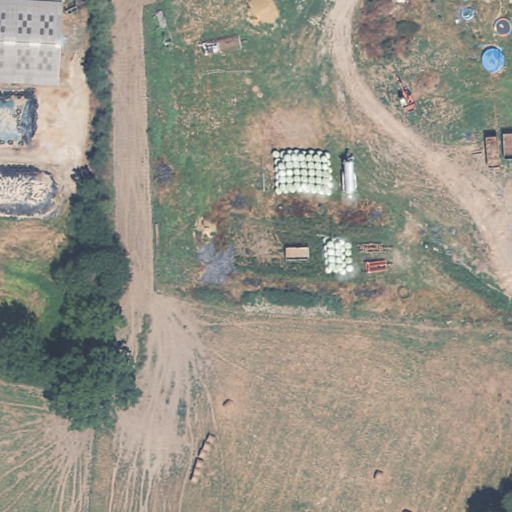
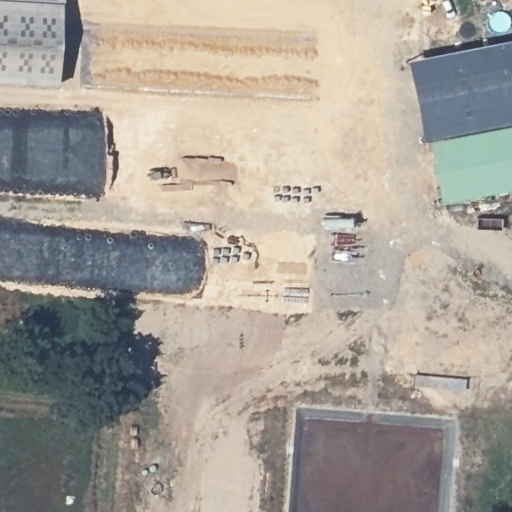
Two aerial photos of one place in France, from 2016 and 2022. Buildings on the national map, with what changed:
unchanged [(0,23),(0,0),(63,0),(61,25),(0,23)]
unchanged [(57,87),(0,83),(0,23),(61,25),(57,87)]
new [(512,42),(512,188),(434,203),(406,62),(512,42)]

